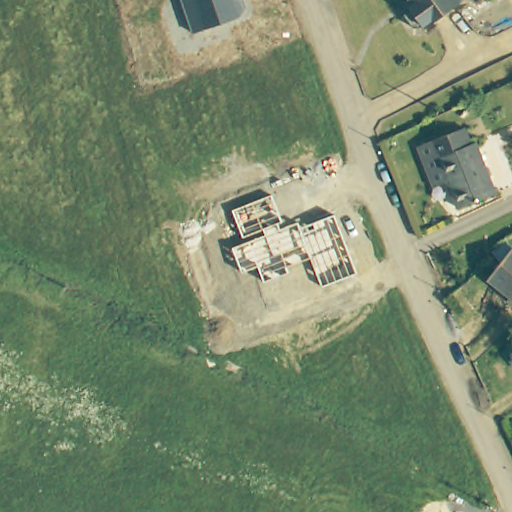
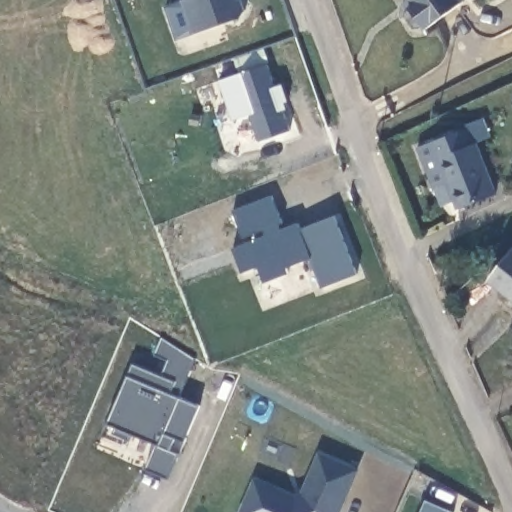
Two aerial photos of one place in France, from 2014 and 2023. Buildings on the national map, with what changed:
unchanged [(247,0),(248,8),(242,18),(195,36),(180,0),(247,0)]
unchanged [(425,30),(415,36),(403,18),(413,11),(406,0),(455,0),(463,13),(429,36),(425,30)]
new [(243,72),(268,64),(290,130),(260,141),(252,114),(233,120),(219,81),(243,72)]
unchanged [(479,144),(498,193),(458,209),(447,181),(431,188),(416,150),(468,130),(474,146),(479,144)]
unchanged [(311,260),(287,267),(290,274),(264,283),(257,266),(241,272),(232,248),(247,243),(233,210),(273,195),(285,229),(298,224),(300,229),(336,217),(359,274),(323,287),(311,260)]
unchanged [(483,279),(508,250),(512,253),(512,303),(483,279)]
demolished [(299,293),(300,322),(273,324),(274,294),(299,293)]
new [(156,444),(107,424),(127,377),(132,365),(160,377),(167,360),(154,354),(161,338),(194,358),(178,398),(198,406),(183,441),(173,437),(168,451),(178,454),(167,478),(146,469),(156,444)]
new [(338,512),(240,512),(255,479),(292,494),(300,491),(318,453),(357,468),(338,512)]

